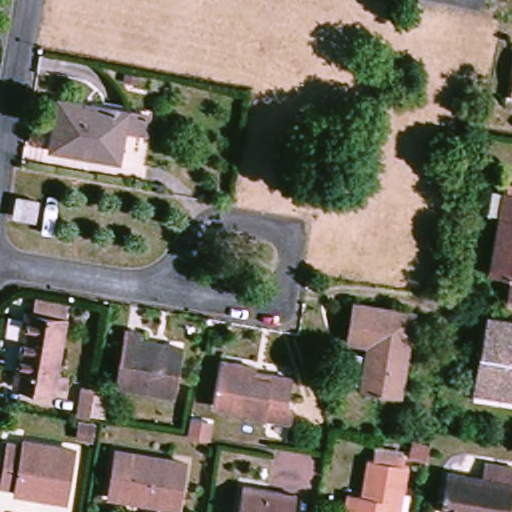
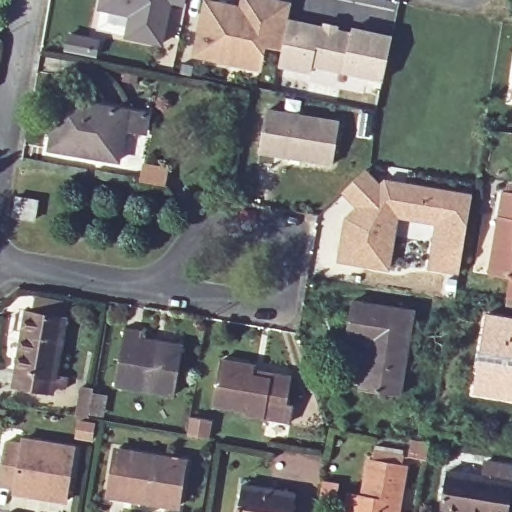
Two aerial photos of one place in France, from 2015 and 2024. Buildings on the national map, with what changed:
new [(163,0),(155,41),(120,35),(124,13),(93,6),(94,0),(163,0)]
new [(170,0),(181,0),(180,3),(170,0)]
new [(190,56),(200,1),(235,8),(237,0),(272,0),(286,3),(283,18),(278,48),(261,45),(259,56),(256,69),(229,64),(190,56)]
new [(278,48),(283,18),(347,30),(348,25),(388,32),(379,80),(308,66),(306,74),(275,68),(278,48)]
new [(91,57),(84,56),(61,51),(65,35),(87,39),(95,41),(91,57)]
unchanged [(500,103),(507,57),(512,58),(512,104),(500,103)]
unchanged [(123,133),(118,164),(51,153),(59,103),(147,116),(144,136),(123,133)]
new [(265,109),(337,123),(329,165),(257,151),(265,109)]
new [(377,267),(333,260),(339,218),(352,207),(335,187),(359,166),(376,186),(382,181),(469,195),(456,272),(425,267),(431,223),(390,216),(381,268),(377,267)]
unchanged [(32,214),(12,210),(15,191),(36,195),(32,214)]
unchanged [(503,300),(506,282),(486,278),(500,195),(512,196),(512,301),(503,300)]
unchanged [(351,346),(365,348),(366,336),(345,332),(351,297),(415,308),(400,389),(360,381),(360,377),(347,375),(351,346)]
unchanged [(54,388),(16,381),(27,310),(65,316),(54,388)]
unchanged [(500,395),(499,403),(471,398),(483,322),(512,326),(512,397),(500,395)]
unchanged [(172,392),(115,383),(121,334),(136,336),(136,341),(179,348),(172,392)]
unchanged [(255,367),(254,376),(270,379),(271,374),(290,377),(285,405),(290,406),(287,424),(244,417),(244,413),(215,409),(223,362),(255,367)]
unchanged [(89,436),(75,434),(76,419),(91,421),(89,436)]
unchanged [(66,499),(15,491),(15,487),(0,484),(6,446),(21,448),(21,442),(74,450),(66,499)]
unchanged [(409,460),(411,442),(428,445),(426,463),(409,460)]
unchanged [(175,508),(108,497),(115,451),(181,462),(175,508)]
unchanged [(346,496),(356,497),(360,498),(366,462),(371,463),(373,453),(401,458),(400,468),(405,469),(397,512),(344,512),(346,496)]
unchanged [(441,511),(446,474),(481,479),(485,464),(512,468),(512,491),(509,512),(441,512),(441,511)]
unchanged [(294,512),(240,512),(245,483),(297,491),(294,512)]

